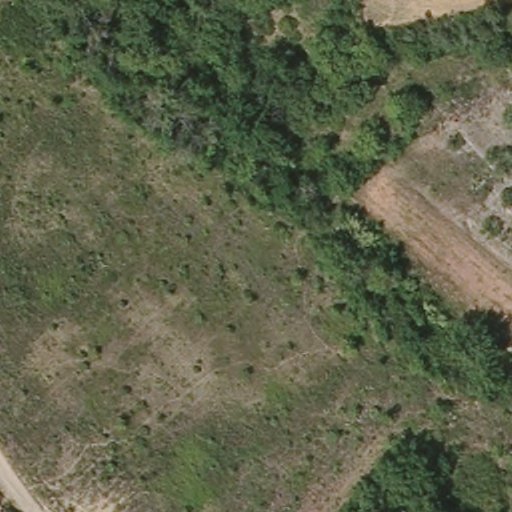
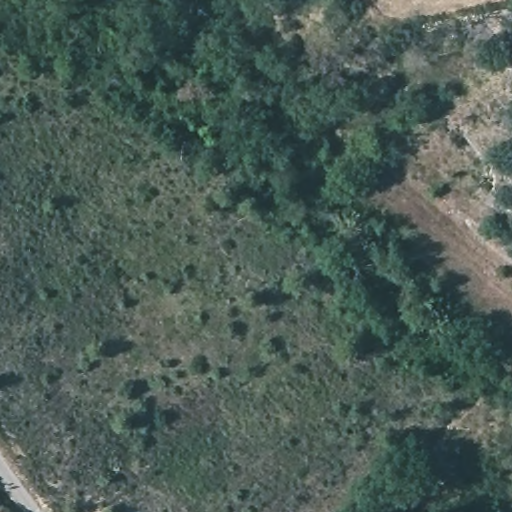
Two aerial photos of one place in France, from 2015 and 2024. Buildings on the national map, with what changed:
[]

